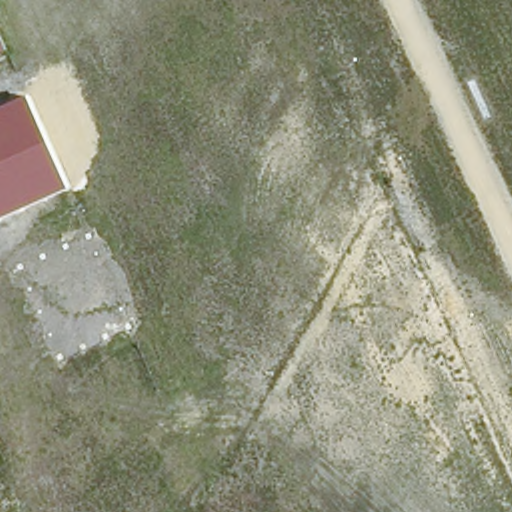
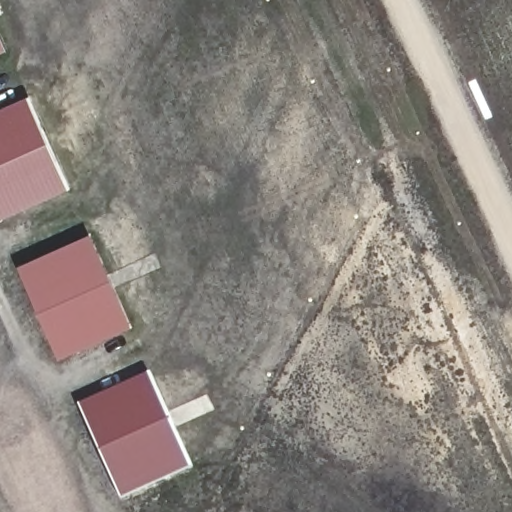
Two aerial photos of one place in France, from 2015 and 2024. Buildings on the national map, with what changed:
unchanged [(0,54),(0,36),(6,51),(0,54)]
unchanged [(0,108),(29,95),(70,188),(0,220),(0,108)]
new [(58,358),(19,266),(90,233),(131,326),(58,358)]
new [(120,498),(79,404),(150,372),(191,467),(120,498)]

